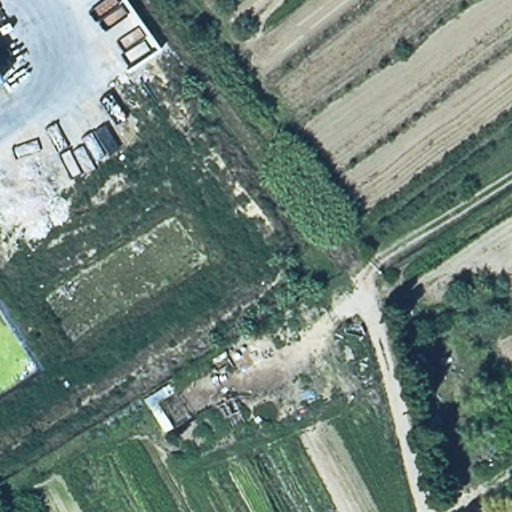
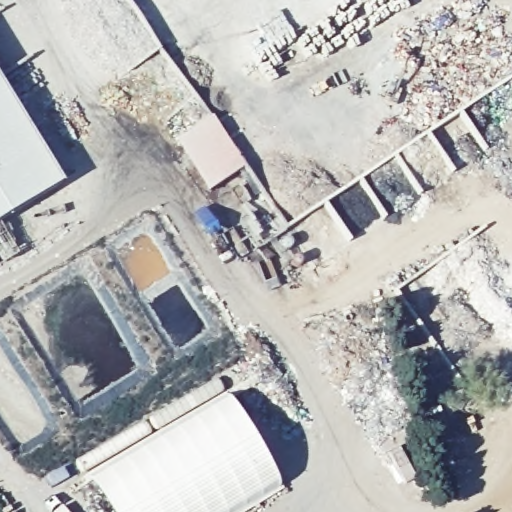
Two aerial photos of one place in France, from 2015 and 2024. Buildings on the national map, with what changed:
new [(0,83),(60,182),(0,219),(0,83)]
new [(221,384),(277,482),(227,512),(110,512),(83,465),(221,384)]

